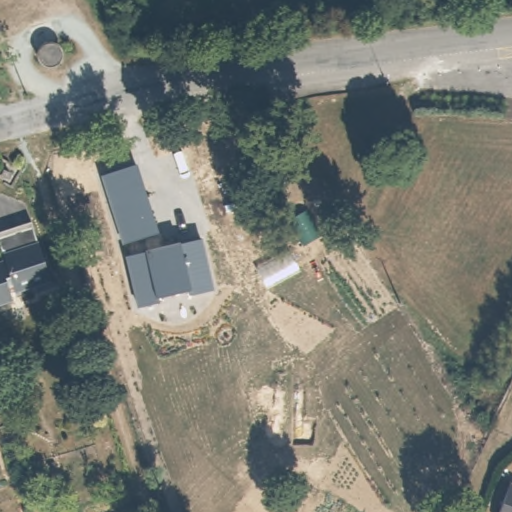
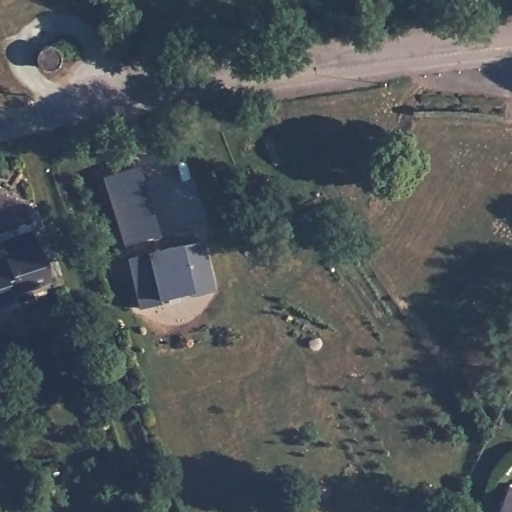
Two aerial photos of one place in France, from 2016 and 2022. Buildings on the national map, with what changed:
unchanged [(165,246),(179,243),(202,239),(215,288),(191,295),(192,290),(160,297),(158,302),(137,307),(126,255),(101,175),(136,166),(165,246)]
unchanged [(15,295),(13,291),(7,293),(11,304),(0,308),(0,273),(7,271),(2,259),(0,252),(0,242),(32,231),(37,249),(49,284),(15,295)]
unchanged [(512,487),(512,512),(500,512),(510,486),(512,487)]

